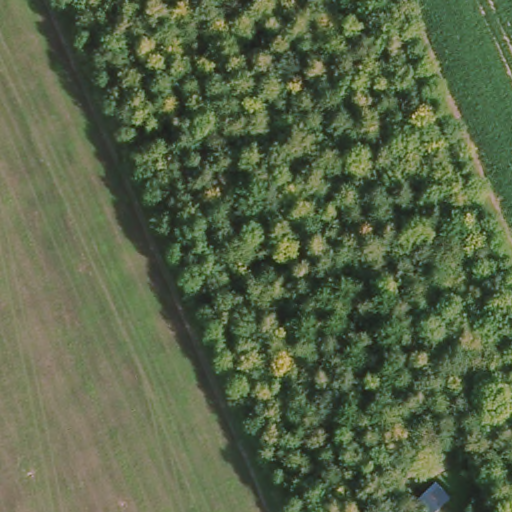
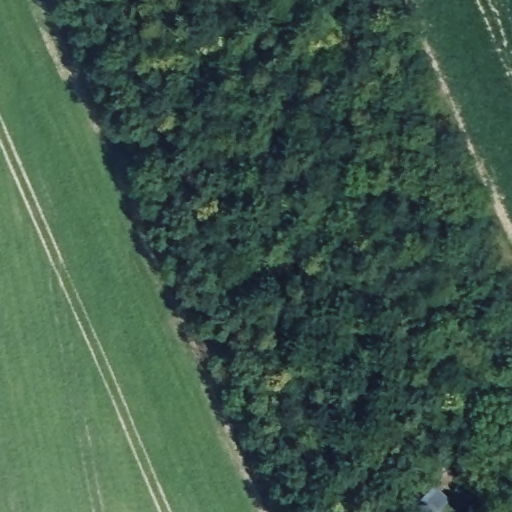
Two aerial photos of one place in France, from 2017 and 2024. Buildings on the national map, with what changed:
unchanged [(512,476),(512,492),(506,495),(501,480),(512,476)]

